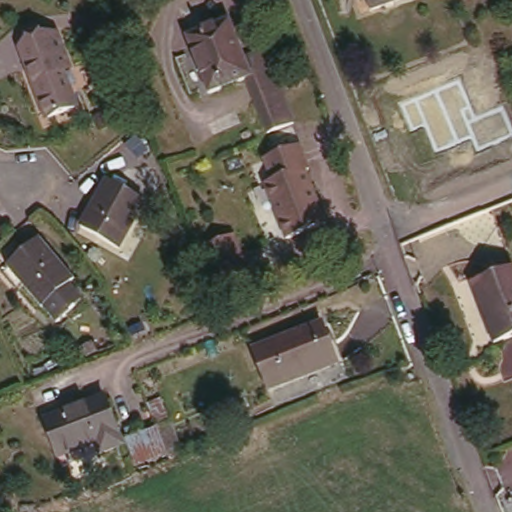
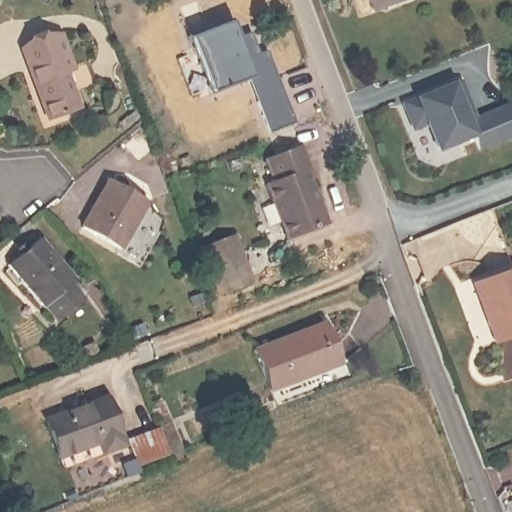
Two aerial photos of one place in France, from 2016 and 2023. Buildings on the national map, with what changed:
unchanged [(373,0),(392,0),(375,6),(373,0)]
unchanged [(274,52),(301,124),(275,134),(255,80),(217,94),(195,38),(239,21),(254,60),(255,60),(274,52)]
unchanged [(76,104),(49,114),(23,46),(57,33),(69,65),(62,68),(76,104)]
new [(457,81),(471,118),(512,102),(512,138),(476,153),(468,137),(432,152),(422,126),(410,130),(402,103),(457,81)]
unchanged [(292,141),(303,164),(300,166),(325,218),(286,236),(261,184),(268,180),(257,158),(292,141)]
unchanged [(88,225),(120,182),(154,207),(122,249),(88,225)]
unchanged [(205,245),(232,234),(251,281),(224,292),(205,245)]
unchanged [(45,306),(11,266),(43,238),(79,279),(75,282),(88,297),(60,321),(46,305),(45,306)]
unchanged [(512,273),(512,338),(499,343),(492,323),(497,321),(484,283),(512,273)]
unchanged [(260,353),(327,327),(343,365),(274,392),(260,353)]
unchanged [(64,448),(51,412),(110,391),(127,437),(106,444),(102,434),(64,448)]
unchanged [(158,430),(168,425),(179,452),(168,456),(158,430)]

